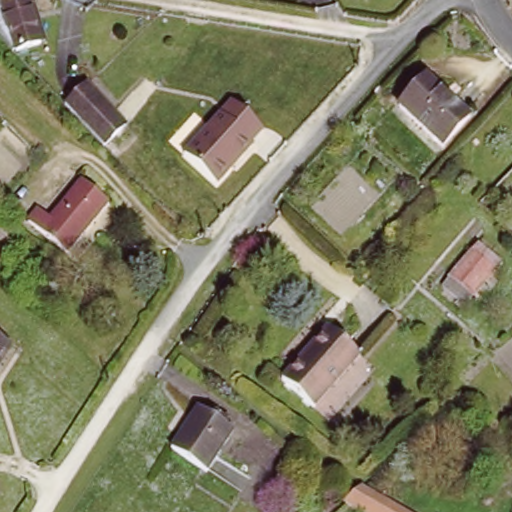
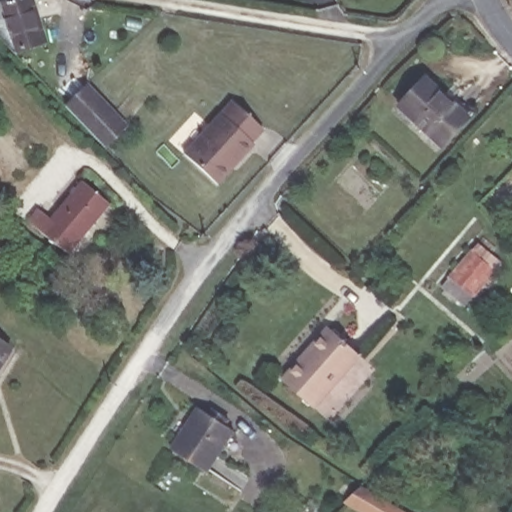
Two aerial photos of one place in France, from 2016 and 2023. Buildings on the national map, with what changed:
unchanged [(35,0),(47,37),(19,47),(0,27),(0,2),(5,0),(35,0)]
unchanged [(465,116),(437,145),(396,106),(424,77),(465,116)]
unchanged [(63,108),(85,83),(127,122),(105,147),(63,108)]
unchanged [(228,100),(263,131),(217,184),(183,152),(228,100)]
unchanged [(81,186),(108,204),(80,249),(75,257),(46,239),(56,225),(81,186)]
unchanged [(508,209),(511,206),(512,206),(512,229),(503,221),(511,213),(508,209)]
unchanged [(500,264),(464,306),(440,289),(477,244),(500,264)]
unchanged [(281,388),(315,335),(318,329),(343,344),(354,351),(348,360),(316,410),(281,388)]
unchanged [(17,351),(0,379),(0,340),(17,351)]
unchanged [(171,451),(200,406),(235,429),(207,473),(171,451)]
unchanged [(437,512),(396,512),(360,488),(376,473),(378,475),(437,512)]

